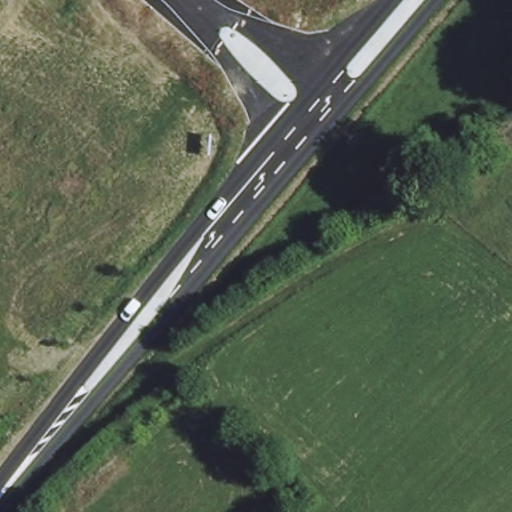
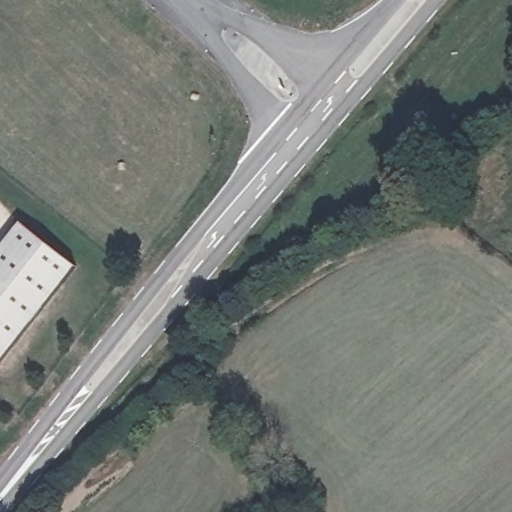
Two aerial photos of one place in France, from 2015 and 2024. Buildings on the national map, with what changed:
new [(76,266),(0,364),(0,251),(22,223),(76,266)]

